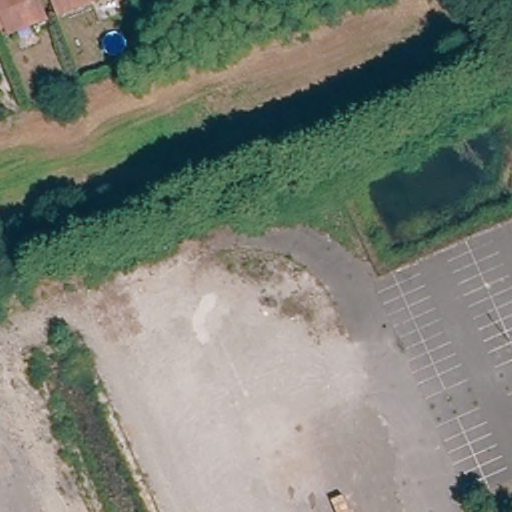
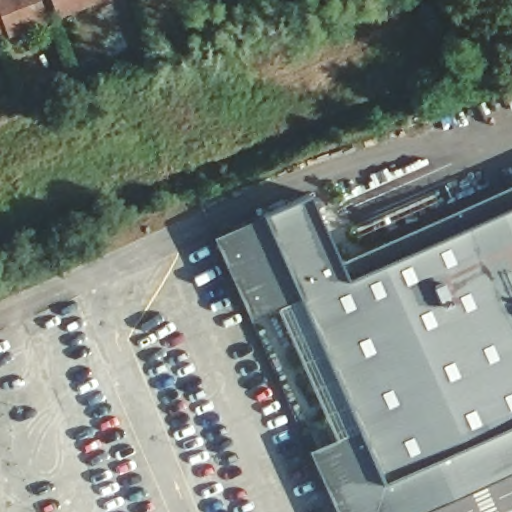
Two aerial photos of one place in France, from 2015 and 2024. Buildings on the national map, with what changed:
unchanged [(44,22),(9,36),(5,26),(0,28),(0,0),(35,0),(44,22)]
unchanged [(113,0),(60,22),(51,0),(113,0)]
new [(512,183),(512,471),(419,512),(336,512),(309,450),(357,429),(299,297),(249,318),(214,236),(261,213),(308,194),(338,260),(512,183)]

